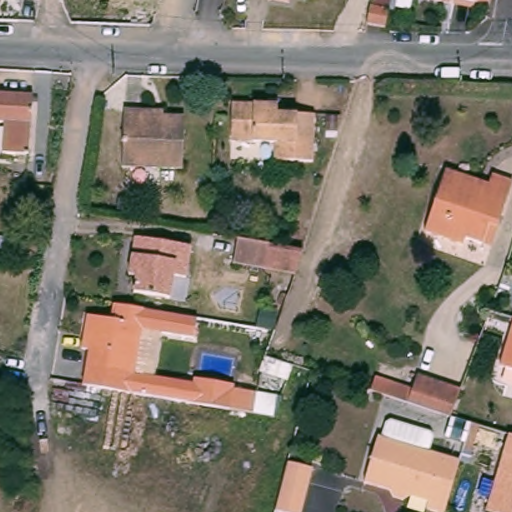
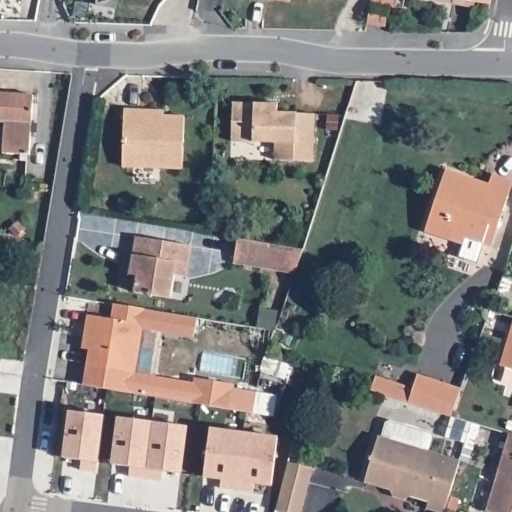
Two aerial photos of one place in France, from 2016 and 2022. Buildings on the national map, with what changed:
unchanged [(298,0),(297,4),(280,0),(298,0)]
unchanged [(429,0),(451,0),(450,4),(429,0)]
unchanged [(463,0),(502,0),(501,6),(483,3),(481,9),(462,6),(463,0)]
unchanged [(370,4),(388,8),(384,25),(366,22),(370,4)]
unchanged [(9,154),(9,121),(0,120),(0,92),(37,94),(36,154),(9,154)]
unchanged [(283,159),(283,140),(238,138),(239,101),(285,102),(285,109),(321,113),(319,159),(283,159)]
unchanged [(130,165),(131,110),(148,110),(149,116),(191,118),(189,166),(130,165)]
unchanged [(488,242),(471,237),(468,243),(430,230),(451,169),(494,183),(497,173),(512,178),(512,199),(503,227),(497,245),(488,242)]
unchanged [(44,230),(41,244),(31,243),(33,229),(44,230)]
unchanged [(196,243),(191,275),(179,274),(175,296),(139,290),(142,275),(135,274),(138,255),(142,235),(196,243)]
unchanged [(299,253),(293,270),(262,265),(261,272),(229,267),(233,242),(299,253)]
unchanged [(92,364),(95,347),(87,346),(93,313),(116,317),(118,303),(159,310),(156,324),(149,323),(140,372),(137,392),(111,388),(89,384),(92,364)]
unchanged [(502,369),(512,331),(512,372),(502,369)]
unchanged [(466,389),(456,416),(416,404),(381,393),(377,391),(382,378),(420,389),(425,374),(466,389)]
new [(200,384),(196,402),(137,392),(140,375),(200,384)]
demolished [(196,402),(202,379),(241,386),(240,389),(238,409),(196,402)]
new [(260,413),(238,409),(196,402),(202,379),(241,386),(240,389),(263,394),(260,413)]
unchanged [(371,403),(361,400),(364,389),(374,393),(371,403)]
new [(99,461),(63,458),(68,411),(103,416),(99,461)]
new [(112,463),(117,417),(189,426),(183,474),(112,463)]
unchanged [(435,434),(438,439),(433,454),(464,462),(448,512),(442,512),(431,509),(433,503),(369,483),(383,439),(386,440),(390,426),(395,423),(435,434)]
new [(273,484),(205,476),(211,428),(278,437),(273,484)]
unchanged [(512,439),(512,512),(491,512),(512,439)]
unchanged [(279,512),(278,512),(291,463),(312,469),(301,512),(281,512),(279,512)]

